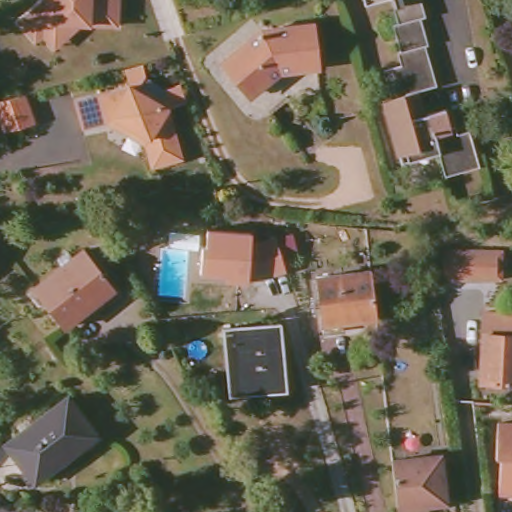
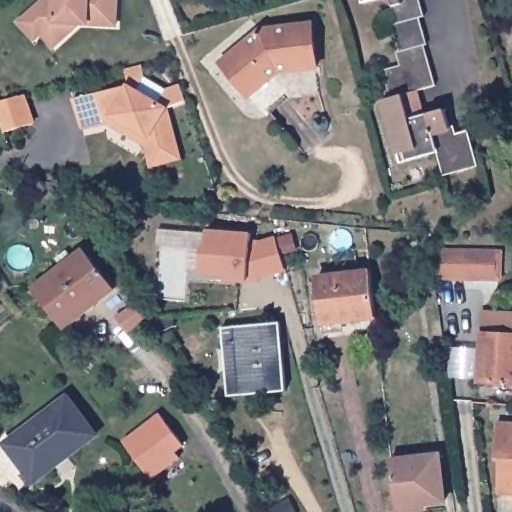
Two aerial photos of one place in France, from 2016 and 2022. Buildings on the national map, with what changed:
unchanged [(45,37),(43,35),(37,41),(22,24),(36,11),(49,0),(118,0),(119,23),(82,24),(75,32),(68,38),(55,49),(45,37)]
unchanged [(429,13),(424,15),(432,41),(428,42),(441,82),(421,89),(425,101),(420,103),(425,117),(444,111),(452,136),(468,131),(476,157),(442,167),(435,143),(402,153),(385,100),(395,97),(387,68),(405,63),(402,49),(405,48),(397,23),(403,21),(397,0),(425,0),(429,13)]
unchanged [(310,58),(269,70),(262,76),(279,92),(264,107),(215,62),(248,30),(299,16),(310,58)]
unchanged [(108,125),(102,127),(83,131),(75,102),(92,98),(131,88),(138,93),(147,81),(167,96),(158,108),(167,114),(179,163),(150,171),(145,148),(109,125),(108,125)]
unchanged [(0,102),(25,95),(35,124),(6,132),(0,116),(0,102)]
unchanged [(252,232),(251,239),(275,239),(285,272),(248,277),(247,282),(227,281),(227,275),(200,273),(203,245),(207,246),(207,229),(252,232)]
unchanged [(115,289),(62,329),(32,289),(63,266),(57,259),(68,251),(74,258),(85,250),(115,289)]
unchanged [(500,251),(499,281),(453,280),(453,250),(468,250),(500,251)]
unchanged [(373,310),(370,310),(319,315),(313,268),(363,261),(366,261),(373,310)]
unchanged [(478,385),(482,337),(483,314),(512,316),(512,387),(478,385)]
unchanged [(287,386),(240,391),(235,347),(225,348),(222,329),(280,323),(287,386)]
unchanged [(95,439),(67,460),(63,454),(28,479),(4,447),(68,400),(95,439)]
new [(160,414),(185,446),(177,453),(181,459),(167,469),(162,465),(149,475),(123,442),(160,414)]
unchanged [(496,495),(498,461),(493,461),(496,425),(512,426),(512,497),(496,495)]
unchanged [(445,498),(396,505),(395,505),(389,457),(391,457),(437,452),(445,498)]

